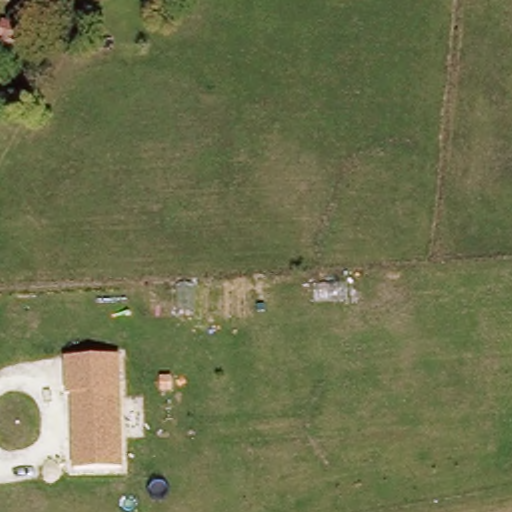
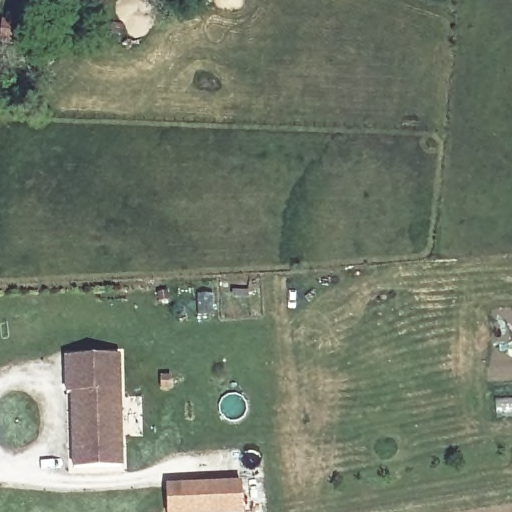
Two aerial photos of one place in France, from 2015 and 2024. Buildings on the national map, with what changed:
unchanged [(11,46),(13,27),(36,29),(35,48),(11,46)]
unchanged [(75,469),(74,393),(65,394),(65,358),(122,355),(125,468),(75,469)]
new [(241,482),(241,512),(168,512),(166,484),(241,482)]

